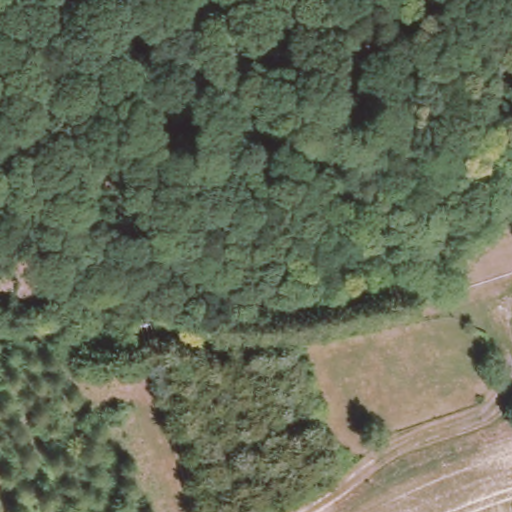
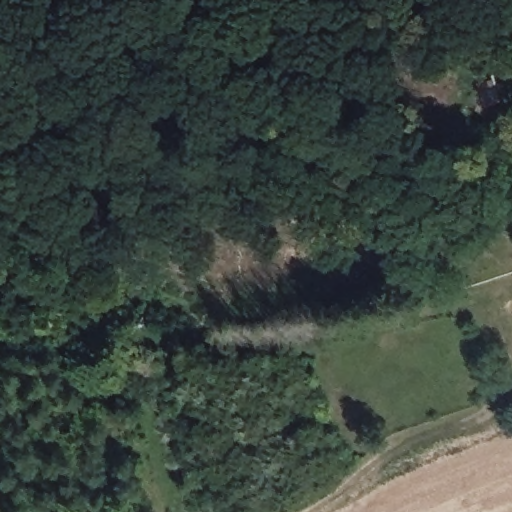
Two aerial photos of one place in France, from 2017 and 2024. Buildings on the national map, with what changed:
unchanged [(512,54),(507,55),(496,14),(512,9),(512,54)]

